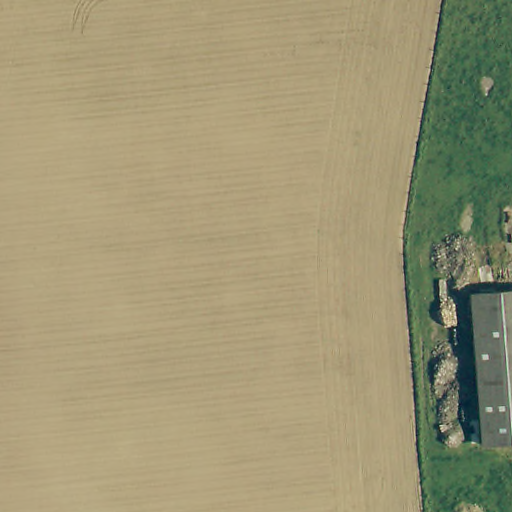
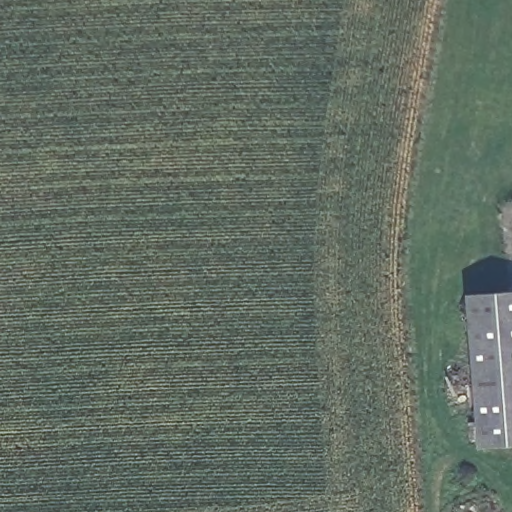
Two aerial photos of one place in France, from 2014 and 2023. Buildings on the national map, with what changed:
unchanged [(512,284),(512,435),(488,438),(469,290),(512,284)]

